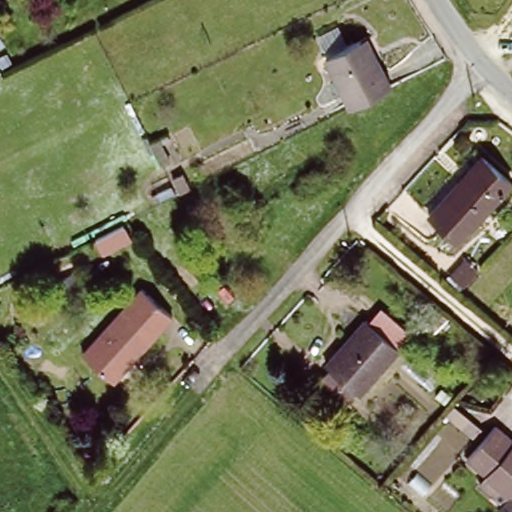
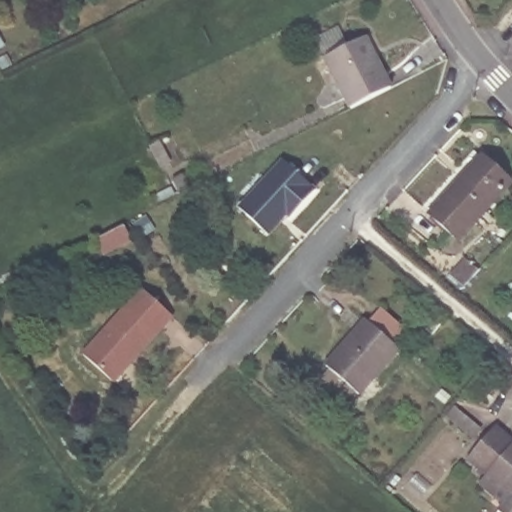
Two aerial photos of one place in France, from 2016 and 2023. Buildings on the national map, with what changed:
unchanged [(360,21),(366,19),(371,26),(364,29),(360,21)]
unchanged [(380,51),(394,79),(355,98),(329,47),(364,29),(376,53),(380,51)]
unchanged [(2,46),(0,48),(0,43),(2,46)]
unchanged [(432,210),(483,152),(512,178),(512,179),(462,237),(432,210)]
new [(290,219),(287,217),(270,235),(238,207),(283,158),(317,189),(290,219)]
unchanged [(181,175),(190,190),(181,194),(172,179),(181,175)]
unchanged [(122,225),(129,238),(103,253),(96,240),(122,225)]
unchanged [(466,287),(453,275),(467,260),(479,271),(466,287)]
unchanged [(133,351),(110,376),(81,349),(139,284),(170,312),(134,352),(133,351)]
unchanged [(322,386),(332,374),(329,372),(368,327),(400,354),(361,399),(357,396),(347,408),(322,386)]
unchanged [(480,379),(494,392),(483,404),(470,393),(480,379)]
unchanged [(489,471),(470,454),(498,422),(512,435),(512,507),(481,479),(489,471)]

